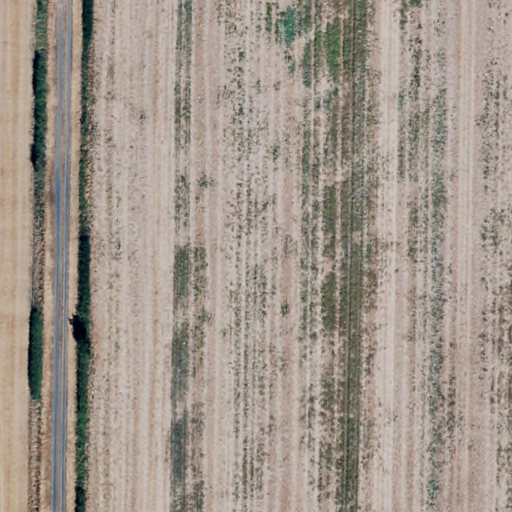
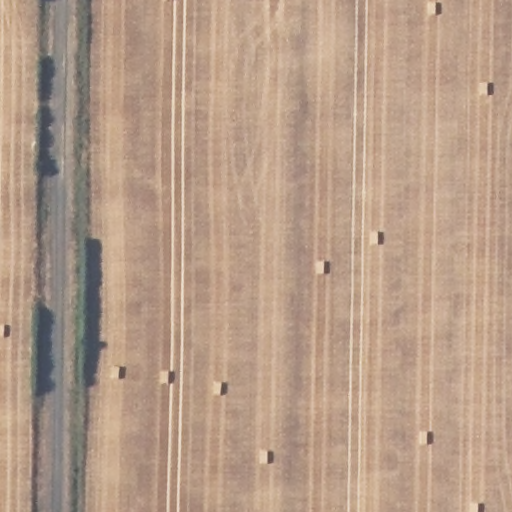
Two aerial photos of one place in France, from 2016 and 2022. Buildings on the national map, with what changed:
[]

